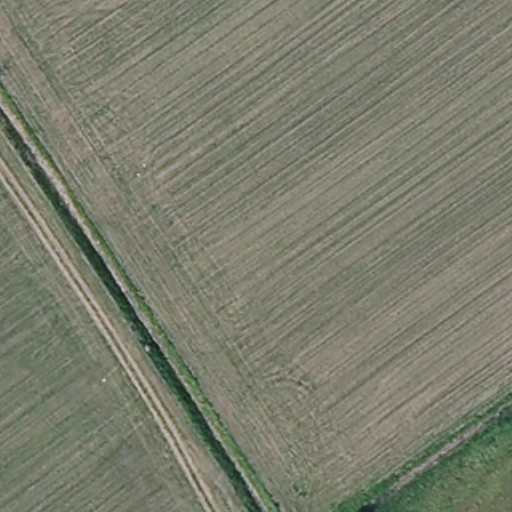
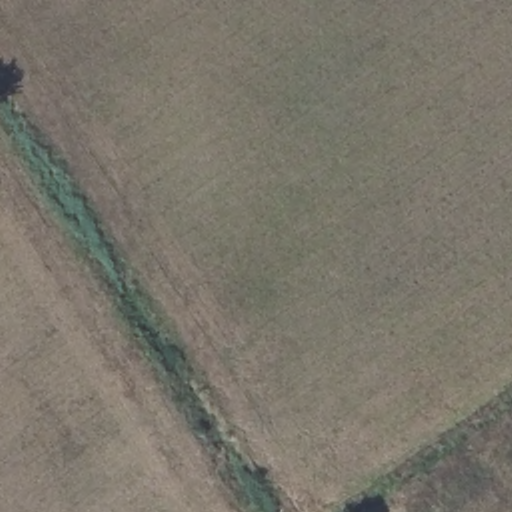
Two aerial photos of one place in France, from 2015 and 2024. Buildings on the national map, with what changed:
[]

